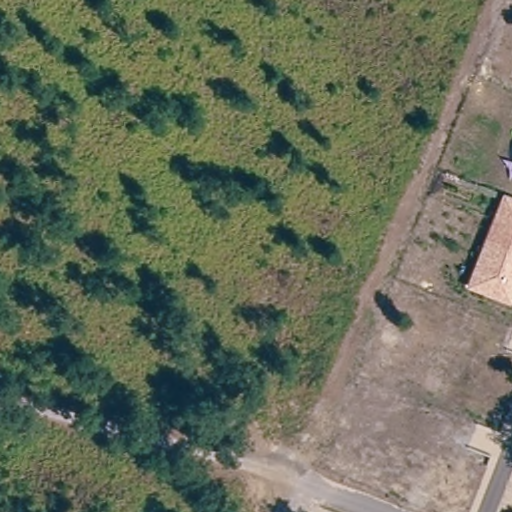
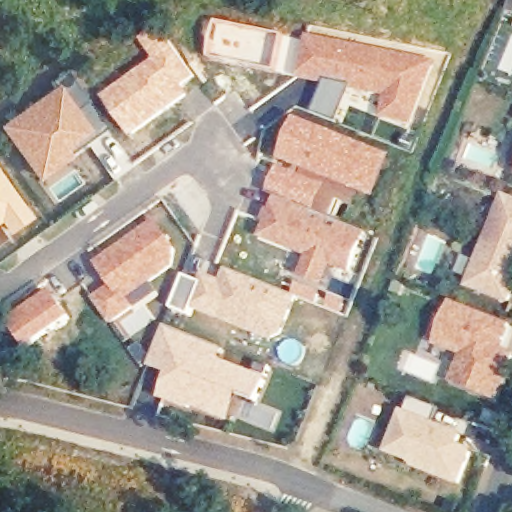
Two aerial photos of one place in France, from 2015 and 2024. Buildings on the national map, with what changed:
new [(154,60),(139,36),(161,21),(200,76),(198,78),(199,80),(188,88),(193,95),(131,140),(100,98),(154,60)]
new [(342,125),(313,113),(323,86),(297,79),(309,33),(388,48),(439,60),(417,126),(422,128),(414,153),(400,148),(408,129),(381,120),(374,136),(342,125)]
new [(98,130),(71,151),(74,155),(38,181),(0,129),(0,124),(59,81),(98,130)]
new [(264,207),(298,119),(397,156),(379,203),(356,194),(344,221),(372,233),(354,275),(334,269),(320,307),(299,299),(291,294),(292,291),(295,282),(278,274),(284,252),(254,240),(264,207)]
new [(6,239),(0,229),(0,170),(34,217),(6,239)]
unchanged [(503,193),(512,197),(512,303),(512,305),(466,288),(503,193)]
new [(127,340),(116,326),(113,328),(83,284),(99,272),(94,263),(158,217),(182,252),(176,266),(153,285),(159,295),(147,304),(158,319),(127,340)]
new [(226,266),(292,291),(291,294),(299,299),(277,346),(195,313),(193,319),(171,310),(185,275),(207,283),(205,286),(214,290),(226,266)]
new [(56,290),(75,320),(30,355),(8,322),(56,290)]
new [(512,325),(512,329),(504,350),(512,352),(512,367),(499,402),(451,387),(463,357),(434,346),(453,302),(512,325)]
new [(164,325),(227,350),(223,360),(271,376),(263,404),(240,396),(229,424),(158,401),(168,376),(148,367),(164,325)]
new [(410,413),(415,402),(441,412),(436,424),(467,436),(462,446),(476,453),(463,489),(416,472),(414,465),(387,455),(404,411),(410,413)]

